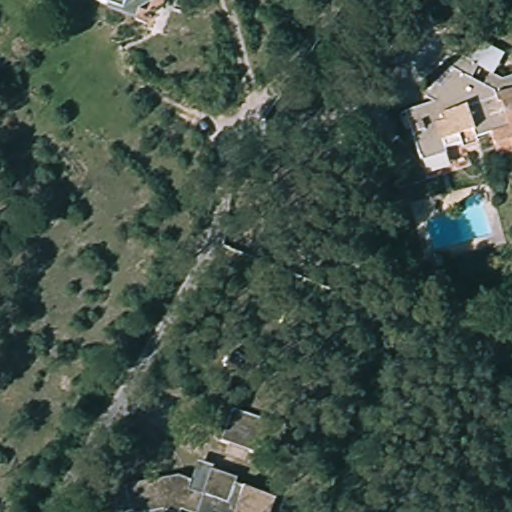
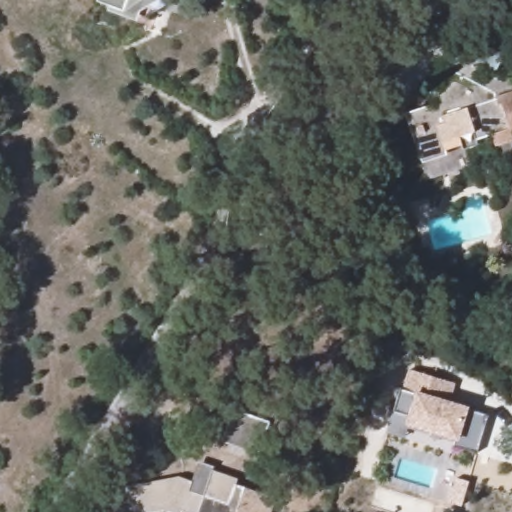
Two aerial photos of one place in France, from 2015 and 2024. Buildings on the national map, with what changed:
new [(158,12),(151,6),(139,12),(136,22),(107,12),(107,6),(97,2),(96,0),(166,0),(170,2),(158,12)]
demolished [(110,0),(124,0),(118,6),(110,0)]
demolished [(128,0),(146,0),(138,7),(128,0)]
demolished [(156,0),(164,0),(161,4),(156,0)]
unchanged [(446,27),(405,5),(407,0),(452,0),(468,12),(446,27)]
unchanged [(504,148),(502,142),(495,144),(491,133),(476,138),(478,144),(464,148),(462,144),(444,150),(445,154),(421,163),(405,114),(435,104),(426,99),(451,52),(477,66),(470,79),(483,86),(490,73),(501,78),(512,75),(512,145),(504,148)]
new [(455,384),(452,402),(469,407),(468,410),(489,416),(477,454),(454,447),(457,442),(408,428),(403,440),(385,433),(392,411),(393,412),(400,389),(402,389),(409,369),(455,384)]
unchanged [(234,408),(270,420),(260,455),(222,443),(234,408)]
unchanged [(140,510),(129,510),(127,485),(142,483),(188,474),(215,492),(225,473),(254,490),(251,500),(271,512),(140,512),(140,510)]

